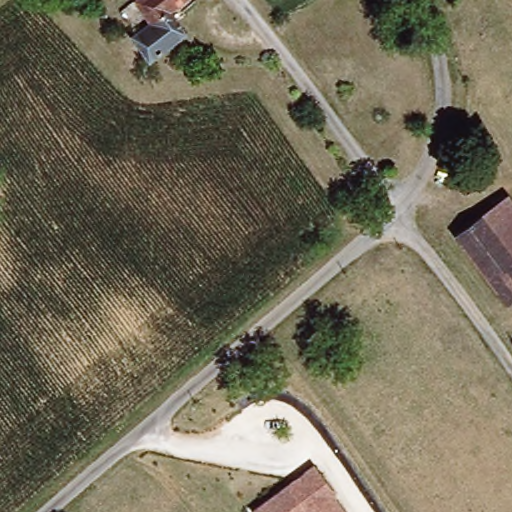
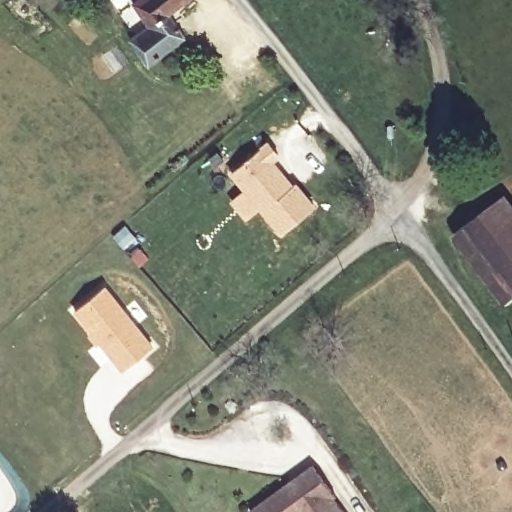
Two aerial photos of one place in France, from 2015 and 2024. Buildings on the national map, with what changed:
unchanged [(177,40),(152,57),(145,63),(127,37),(145,21),(132,1),(134,0),(189,0),(164,19),(177,40)]
new [(277,157),(270,163),(277,173),(290,189),(292,186),(311,209),(279,235),(231,174),(267,145),(277,157)]
unchanged [(480,217),(506,199),(512,207),(512,262),(480,217)]
unchanged [(506,307),(455,236),(480,217),(512,262),(512,303),(506,307)]
new [(105,285),(152,345),(121,371),(70,312),(105,285)]
unchanged [(309,467),(335,498),(332,500),(341,512),(252,512),(309,467)]

